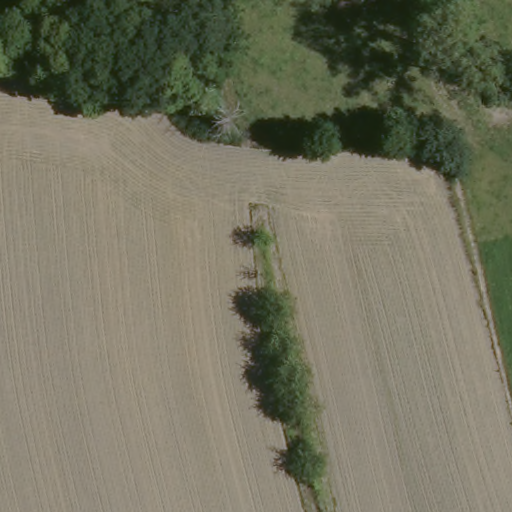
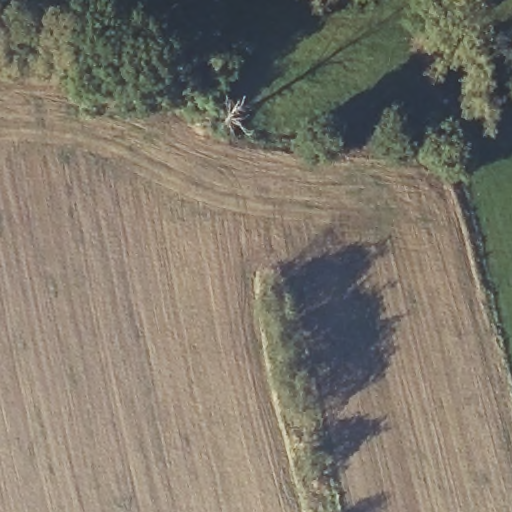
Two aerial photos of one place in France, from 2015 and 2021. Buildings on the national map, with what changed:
[]

